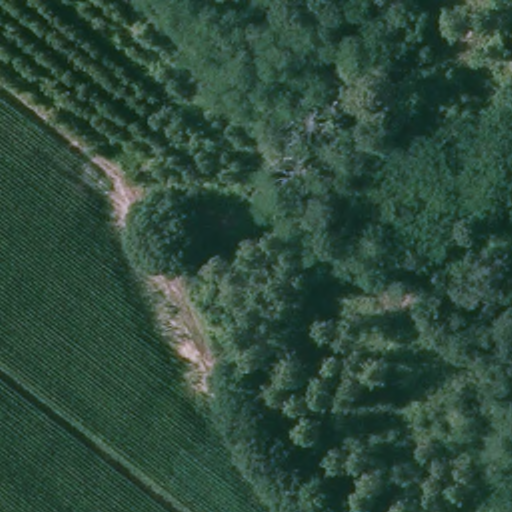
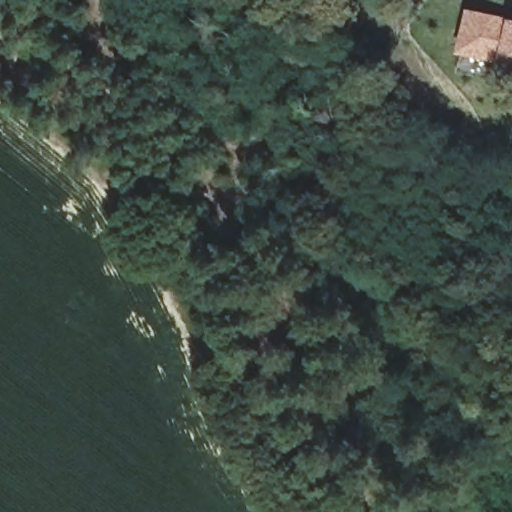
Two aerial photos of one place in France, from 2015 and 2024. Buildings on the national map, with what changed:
new [(469,7),(511,16),(512,17),(512,63),(501,61),(459,52),(469,7)]

